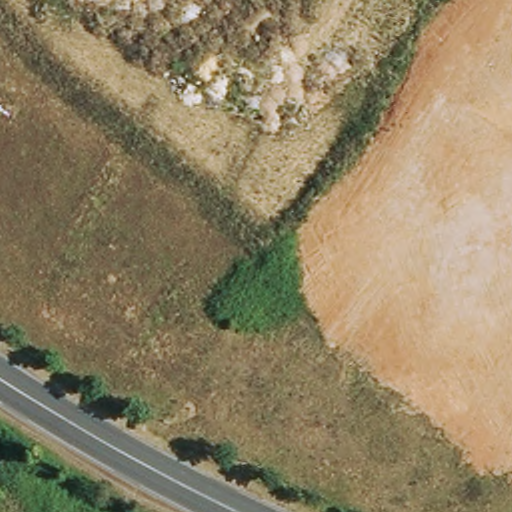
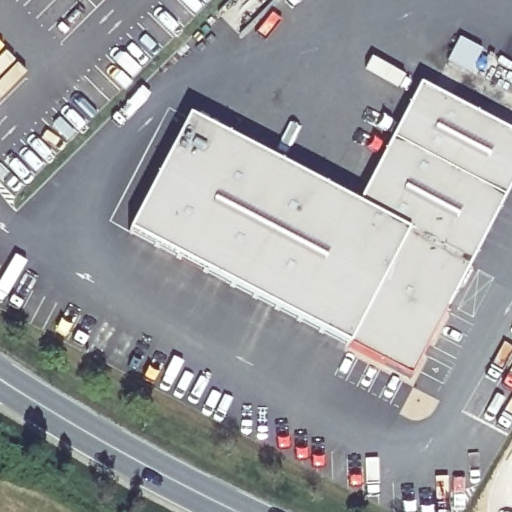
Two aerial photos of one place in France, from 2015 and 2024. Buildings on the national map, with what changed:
new [(356,210),(419,90),(512,145),(512,173),(411,384),(129,236),(188,121),(356,210)]

